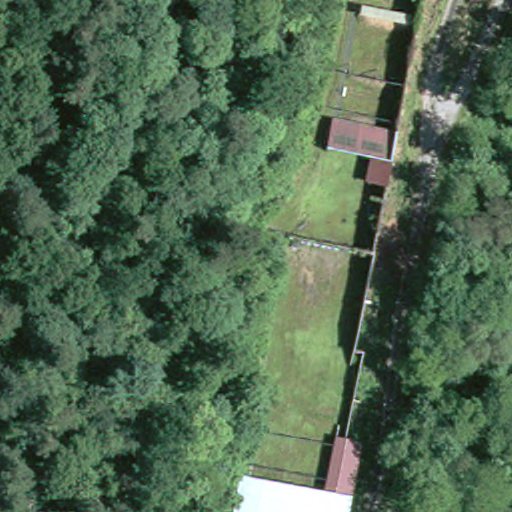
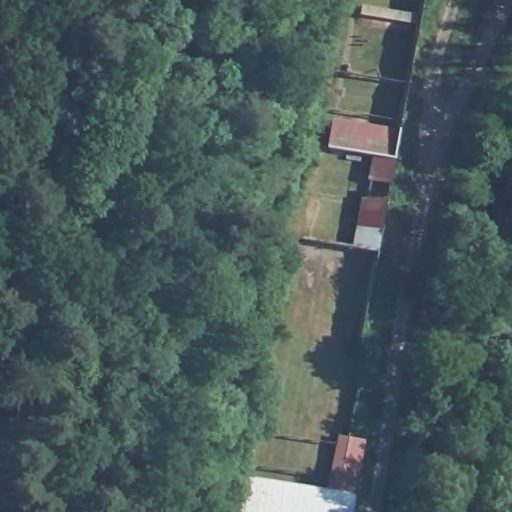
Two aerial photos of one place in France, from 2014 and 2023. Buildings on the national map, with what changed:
unchanged [(335,121),(389,136),(387,164),(331,151),(335,121)]
unchanged [(351,509),(351,512),(238,512),(243,489),(351,509)]

